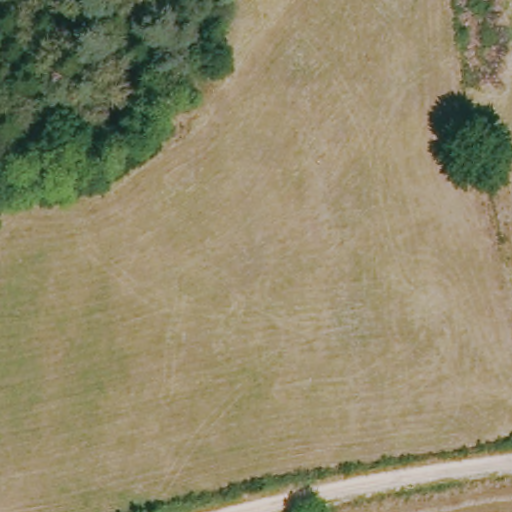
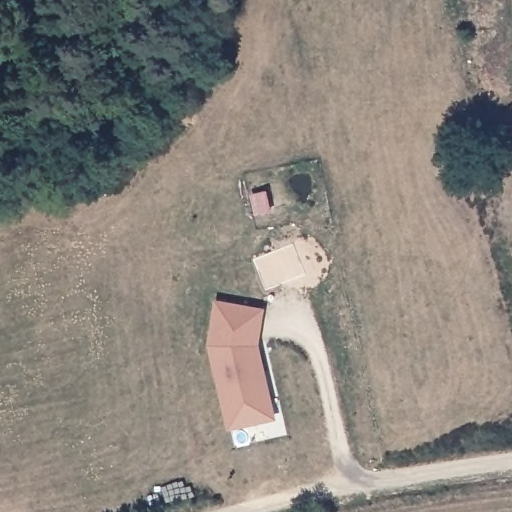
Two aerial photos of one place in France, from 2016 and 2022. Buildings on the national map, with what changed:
new [(228,430),(210,343),(218,297),(267,306),(261,343),(277,417),(228,430)]

